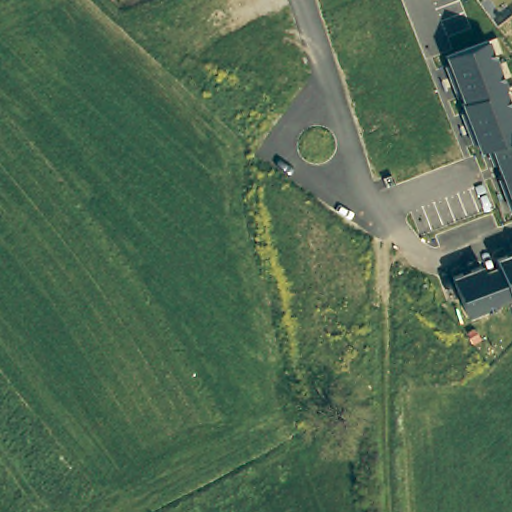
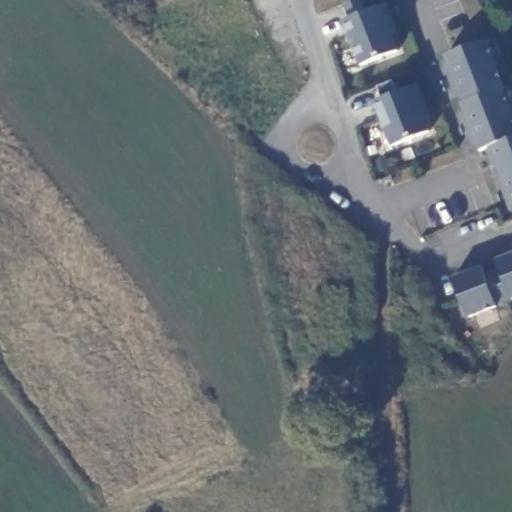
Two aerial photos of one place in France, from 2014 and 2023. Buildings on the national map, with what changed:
new [(342,5),(353,0),(361,0),(367,14),(386,6),(398,37),(394,40),(398,53),(360,66),(342,23),(348,20),(342,5)]
unchanged [(512,199),(492,146),(480,151),(446,56),(487,40),(512,105),(512,199)]
new [(382,100),(377,89),(394,83),(398,94),(412,88),(417,85),(430,116),(424,118),(430,134),(392,148),(375,103),(382,100)]
unchanged [(454,277),(484,267),(486,273),(501,268),(499,260),(512,255),(512,300),(470,317),(454,277)]

